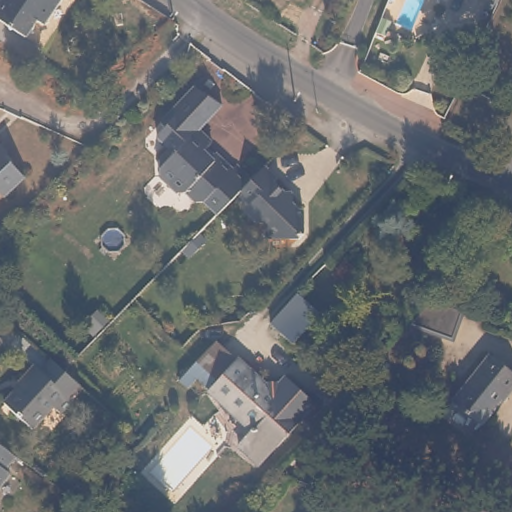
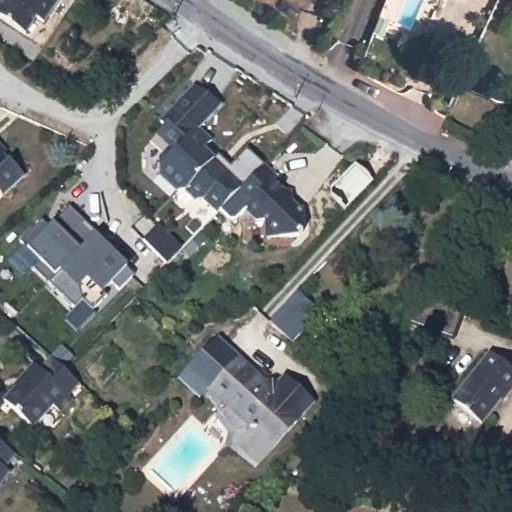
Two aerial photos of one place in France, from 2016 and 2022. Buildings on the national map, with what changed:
unchanged [(43,25),(34,20),(23,36),(0,21),(0,0),(61,0),(43,25)]
unchanged [(231,167),(235,164),(250,179),(238,190),(216,212),(203,200),(195,200),(185,190),(177,190),(160,173),(160,156),(172,145),(159,132),(167,124),(166,122),(163,120),(198,85),(202,87),(223,103),(219,107),(218,105),(198,125),(212,140),(208,144),(215,151),(231,167)]
unchanged [(2,140),(0,142),(0,138),(2,140)]
unchanged [(0,189),(0,145),(15,161),(17,160),(31,174),(11,193),(7,196),(0,189)]
unchanged [(250,179),(265,164),(277,177),(274,180),(284,192),(292,191),(292,210),(303,210),(303,235),(299,239),(267,239),(267,221),(255,220),(245,208),(250,203),(238,190),(250,179)]
new [(97,236),(99,235),(130,266),(127,268),(133,275),(119,290),(112,284),(102,295),(91,310),(82,300),(73,308),(33,267),(40,260),(29,248),(18,238),(40,218),(47,225),(53,220),(68,205),(97,236)]
unchanged [(323,315),(295,345),(273,322),(301,294),(323,315)]
unchanged [(441,300),(455,305),(447,332),(406,319),(427,295),(441,300)]
unchanged [(251,459),(231,440),(247,424),(201,378),(192,388),(184,380),(221,343),(261,383),(273,382),(281,375),(308,401),(294,415),(251,459)]
unchanged [(512,390),(511,391),(509,389),(485,418),(455,394),(492,348),(512,364),(512,390)]
unchanged [(71,380),(63,390),(69,394),(58,407),(51,401),(32,426),(1,403),(21,379),(18,376),(29,362),(35,367),(42,357),(71,380)]
unchanged [(6,474),(11,478),(0,494),(0,444),(18,458),(6,474)]
new [(305,458),(334,467),(328,486),(299,478),(305,458)]

